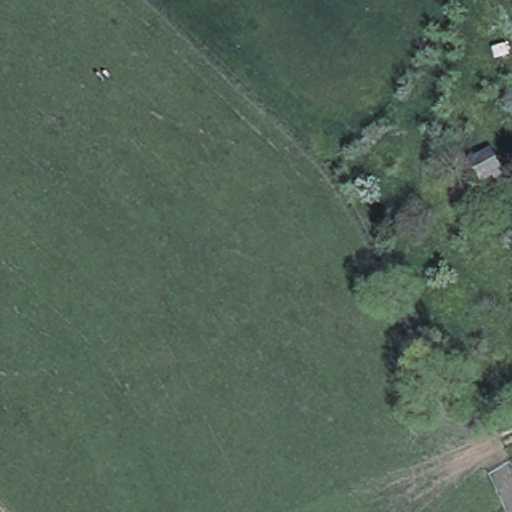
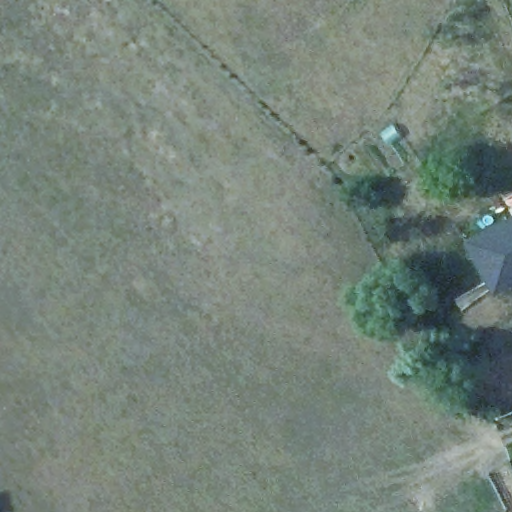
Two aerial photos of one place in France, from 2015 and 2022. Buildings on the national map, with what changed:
unchanged [(491,150),(501,167),(480,182),(468,165),(491,150)]
new [(512,288),(492,298),(462,241),(512,216),(512,288)]

